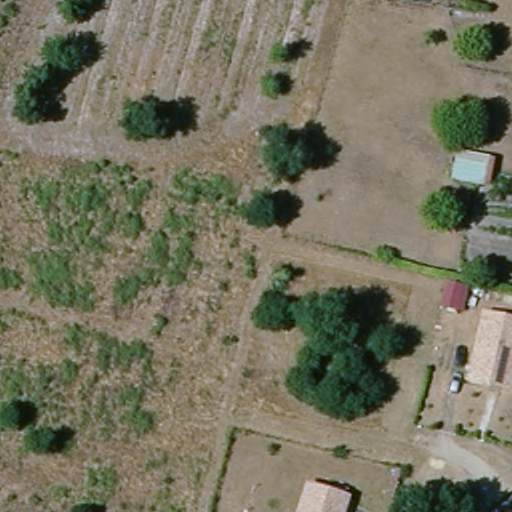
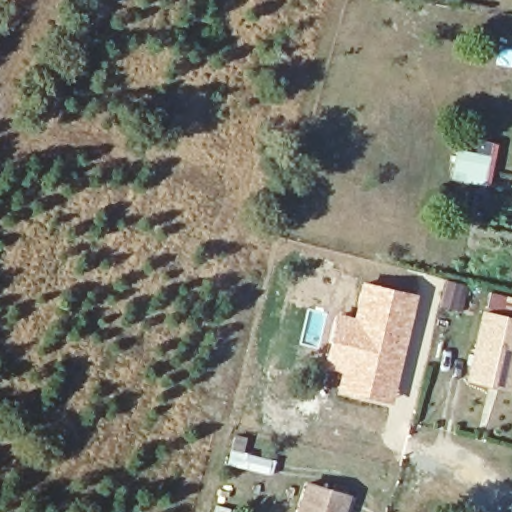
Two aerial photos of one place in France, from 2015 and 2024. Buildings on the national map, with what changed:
new [(336,312),(352,315),(360,279),(417,293),(400,367),(389,404),(334,392),(339,372),(321,368),(336,312)]
unchanged [(447,283),(462,287),(457,310),(441,307),(447,283)]
unchanged [(512,324),(512,378),(509,391),(470,381),(485,318),(512,324)]
unchanged [(343,512),(300,512),(309,486),(348,499),(343,512)]

